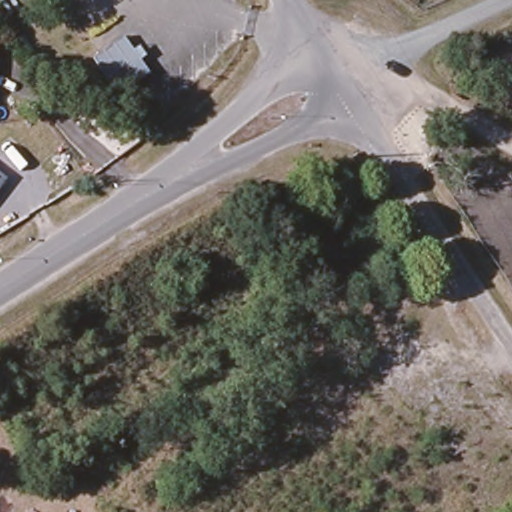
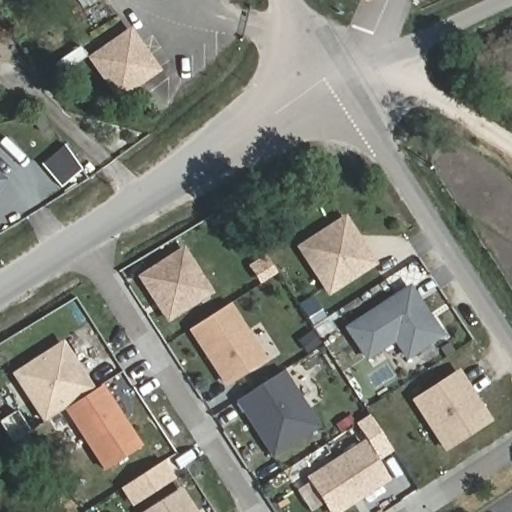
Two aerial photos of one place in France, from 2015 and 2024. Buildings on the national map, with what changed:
unchanged [(117,96),(90,60),(120,38),(130,52),(135,48),(141,56),(136,60),(147,74),(117,96)]
unchanged [(1,187),(0,189),(0,187),(1,187)]
new [(327,296),(295,245),(346,212),(378,265),(327,296)]
new [(137,276),(183,246),(214,293),(167,322),(137,276)]
new [(366,360),(344,327),(410,284),(444,335),(405,360),(394,342),(366,360)]
new [(226,388),(189,329),(232,303),(267,359),(226,388)]
new [(44,423),(11,373),(63,340),(96,389),(44,423)]
new [(320,427),(272,457),(236,399),(283,370),(320,427)]
new [(487,420),(444,447),(413,400),(456,373),(487,420)]
new [(142,446),(107,469),(67,408),(102,385),(142,446)]
demolished [(512,503),(501,512),(291,512),(438,398),(512,494),(512,503)]
new [(376,430),(364,438),(356,426),(368,418),(376,430)]
new [(391,480),(342,512),(328,512),(307,477),(365,440),(391,480)]
demolished [(267,512),(202,512),(243,480),(267,512)]
new [(182,485),(198,512),(141,512),(182,485)]

